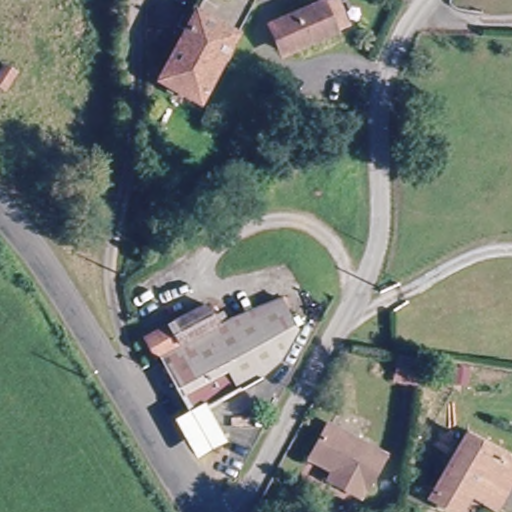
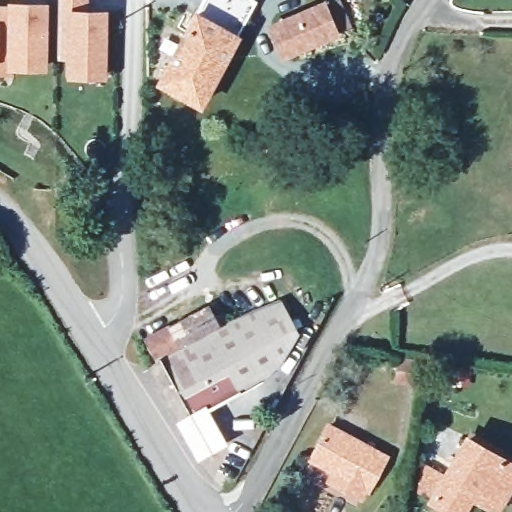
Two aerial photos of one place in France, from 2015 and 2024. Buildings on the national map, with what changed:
new [(89,10),(107,11),(107,80),(67,78),(67,58),(57,58),(59,0),(89,0),(89,10)]
unchanged [(163,83),(203,0),(238,0),(251,7),(203,104),(163,83)]
new [(48,2),(47,72),(5,72),(0,72),(0,1),(7,1),(48,2)]
unchanged [(287,61),(274,32),(334,5),(346,33),(287,61)]
unchanged [(293,323),(276,368),(213,404),(196,414),(192,408),(160,352),(219,323),(277,294),(293,323)]
unchanged [(160,352),(159,353),(147,333),(207,304),(219,323),(160,352)]
unchanged [(451,364),(448,379),(426,376),(427,361),(451,364)]
unchanged [(204,457),(179,416),(192,408),(196,414),(213,404),(234,440),(204,457)]
unchanged [(367,498),(341,486),(345,477),(307,458),(324,427),(388,457),(367,498)]
unchanged [(493,507),(483,500),(476,511),(463,504),(458,511),(428,493),(466,433),(510,458),(512,459),(512,476),(493,507)]

